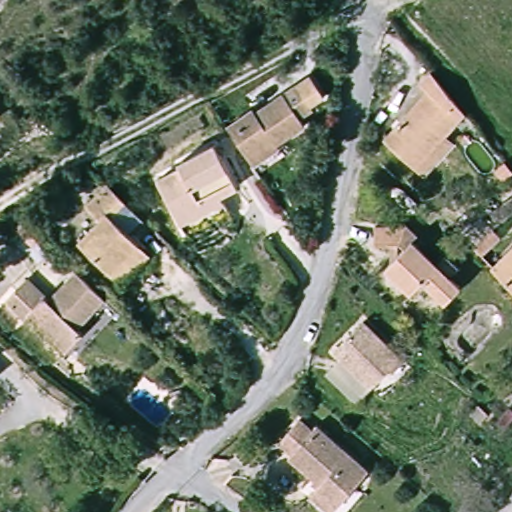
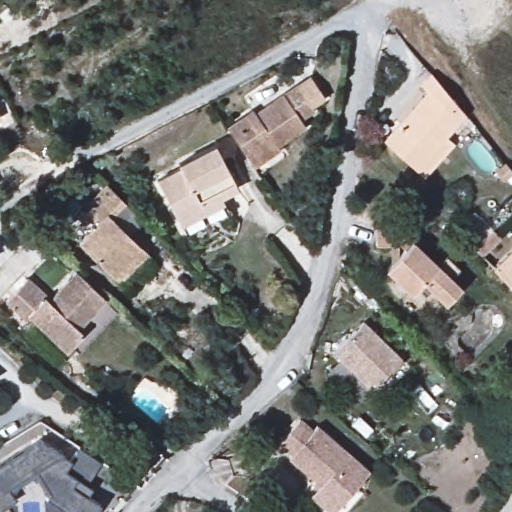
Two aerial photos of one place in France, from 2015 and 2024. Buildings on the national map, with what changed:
unchanged [(467,119),(420,168),(389,136),(421,103),(413,92),(429,77),(467,119)]
unchanged [(227,127),(309,79),(325,107),(297,122),(301,134),(245,168),(227,127)]
unchanged [(231,192),(174,221),(157,184),(176,174),(174,167),(210,148),(231,192)]
unchanged [(123,283),(111,272),(79,237),(99,217),(87,203),(107,181),(128,202),(114,216),(139,243),(149,255),(123,283)]
unchanged [(386,268),(397,248),(372,247),(371,229),(406,229),(462,288),(434,313),(386,268)]
unchanged [(512,283),(497,268),(512,252),(512,283)]
unchanged [(99,294),(77,317),(86,326),(68,346),(36,316),(73,270),(99,294)]
unchanged [(28,321),(10,304),(30,281),(47,298),(28,321)]
unchanged [(401,363),(372,395),(334,355),(364,325),(401,363)]
unchanged [(305,434),(311,426),(362,474),(331,510),(308,490),(311,487),(281,459),(284,455),(272,444),(293,422),(305,434)]
new [(80,448),(101,463),(86,484),(92,487),(87,495),(101,503),(95,512),(69,512),(45,497),(49,492),(37,471),(9,488),(15,499),(0,508),(0,465),(40,440),(72,460),(80,448)]

